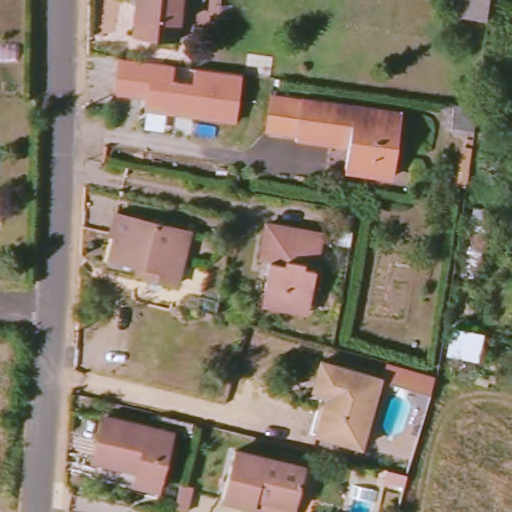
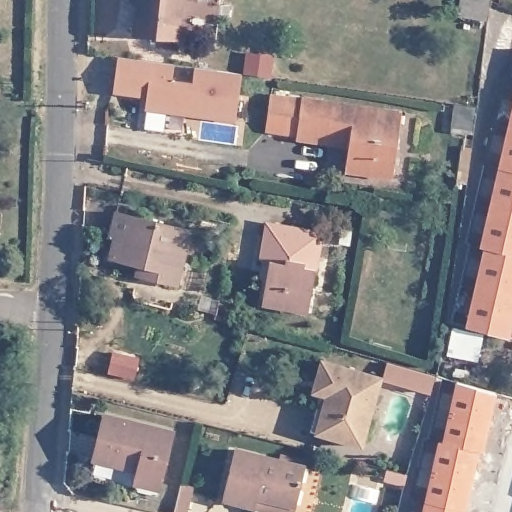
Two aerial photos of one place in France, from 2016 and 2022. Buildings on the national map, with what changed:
unchanged [(138,0),(185,0),(179,36),(135,28),(138,0)]
unchanged [(492,2),(488,29),(466,25),(469,0),(484,0),(492,2)]
unchanged [(236,124),(146,111),(147,99),(114,94),(119,57),(177,65),(175,80),(195,83),(197,69),(243,76),(236,124)]
unchanged [(393,182),(346,174),(352,142),(287,127),(270,123),(275,93),(292,96),(405,118),(393,182)]
new [(512,116),(512,342),(466,332),(485,253),(480,251),(512,116)]
unchanged [(189,231),(176,283),(150,276),(152,269),(112,259),(118,235),(112,234),(118,214),(189,231)]
unchanged [(297,312),(264,307),(268,284),(272,285),(276,264),(263,262),(269,227),(324,236),(314,292),(310,315),(297,312)]
unchanged [(383,379),(365,445),(318,433),(327,400),(313,396),(318,378),(322,363),(383,379)]
new [(458,385),(495,398),(484,456),(478,454),(466,512),(423,512),(438,444),(445,444),(458,385)]
unchanged [(172,433),(160,486),(137,480),(139,471),(95,460),(106,417),(172,433)]
unchanged [(315,468),(307,503),(267,493),(264,506),(232,498),(245,451),(315,468)]
unchanged [(417,474),(414,484),(395,479),(397,469),(417,474)]
unchanged [(200,490),(192,512),(191,512),(183,512),(188,488),(200,490)]

